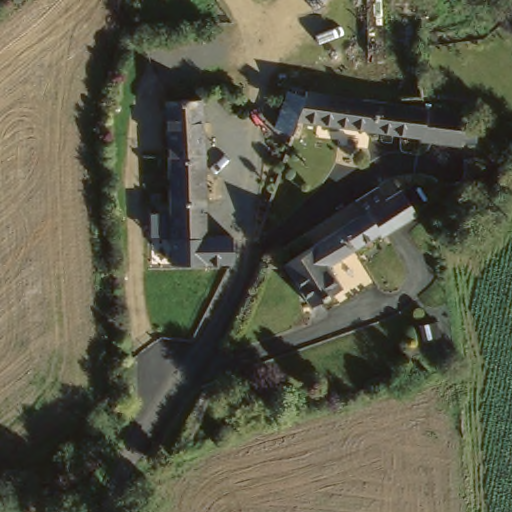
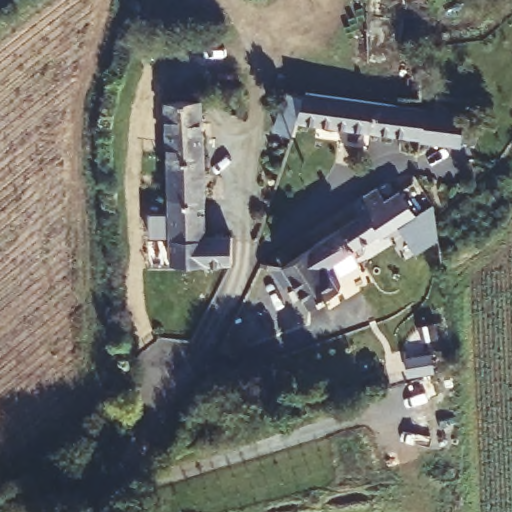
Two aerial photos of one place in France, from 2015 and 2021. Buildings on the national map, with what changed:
unchanged [(171,83),(189,79),(221,216),(238,212),(243,239),(201,249),(200,242),(197,222),(193,222),(183,222),(181,223),(156,101),(153,88),(162,85),(171,83)]
unchanged [(431,110),(469,114),(466,146),(429,143),(430,136),(301,116),(298,131),(281,127),(286,94),(305,98),(306,91),(308,85),(392,101),(431,110)]
unchanged [(423,214),(386,241),(383,238),(341,271),(356,292),(325,314),(290,273),(366,212),(358,200),(358,199),(381,182),(391,194),(403,185),(423,214)]

